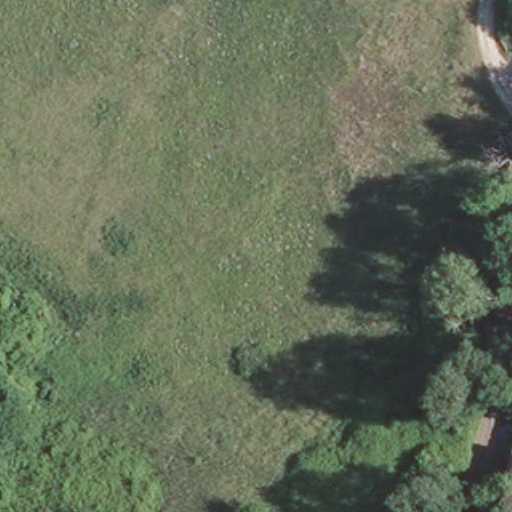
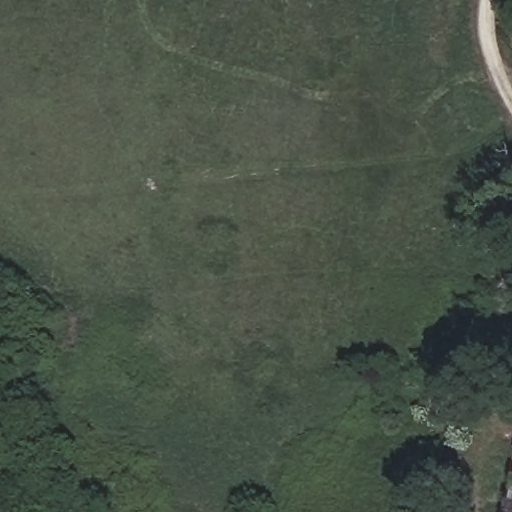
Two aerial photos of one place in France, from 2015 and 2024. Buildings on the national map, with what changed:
unchanged [(503,512),(512,472),(512,512),(503,512)]

